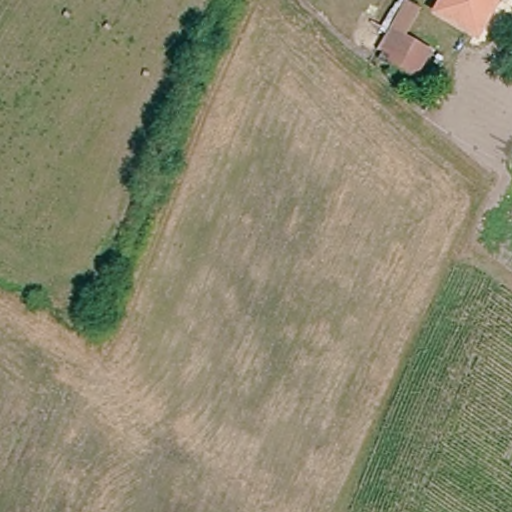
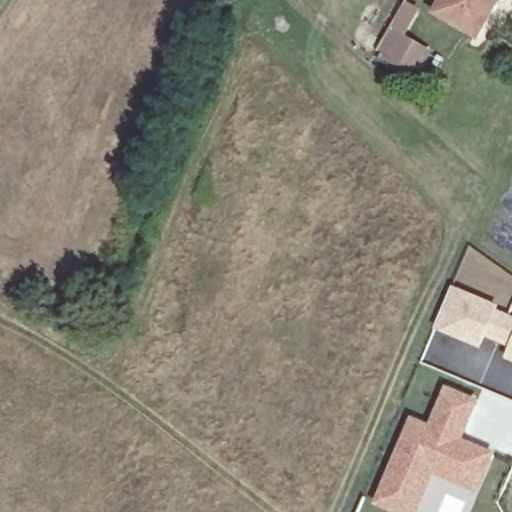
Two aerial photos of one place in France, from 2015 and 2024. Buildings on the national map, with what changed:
unchanged [(488,37),(446,14),(454,0),(507,0),(509,1),(488,37)]
unchanged [(408,1),(423,11),(407,37),(431,52),(416,77),(377,51),(392,27),(408,1)]
new [(497,310),(512,316),(512,363),(505,360),(509,347),(487,338),(481,349),(434,330),(452,286),(499,305),(497,310)]
new [(429,424),(445,385),(480,399),(464,439),(495,452),(479,493),(435,475),(419,512),(389,512),(373,505),(410,417),(429,424)]

